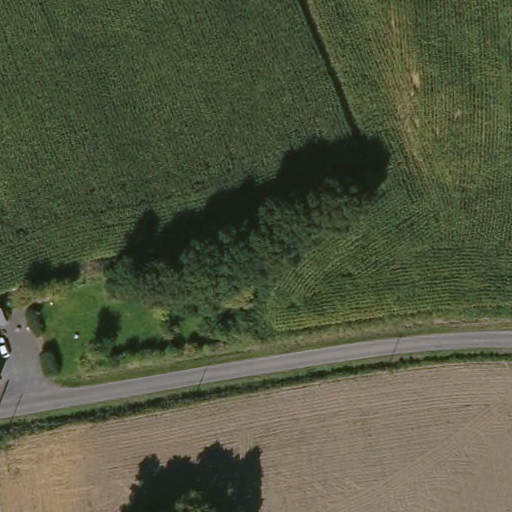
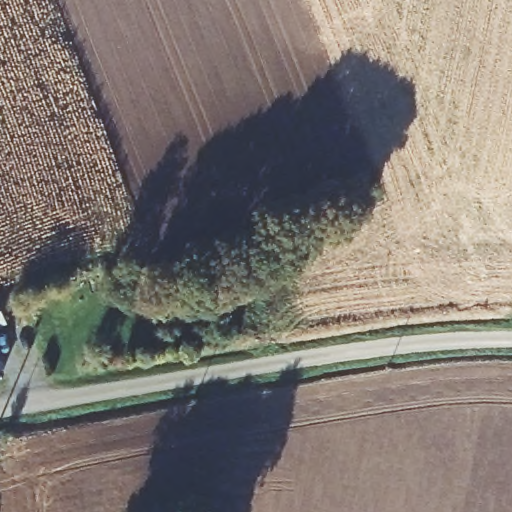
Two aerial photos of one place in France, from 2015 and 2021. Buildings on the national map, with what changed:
unchanged [(6,301),(11,318),(0,323),(0,303),(6,301)]
unchanged [(3,376),(0,376),(0,368),(3,376)]

